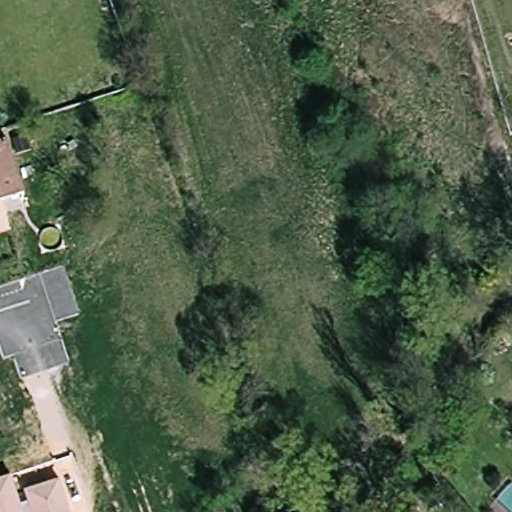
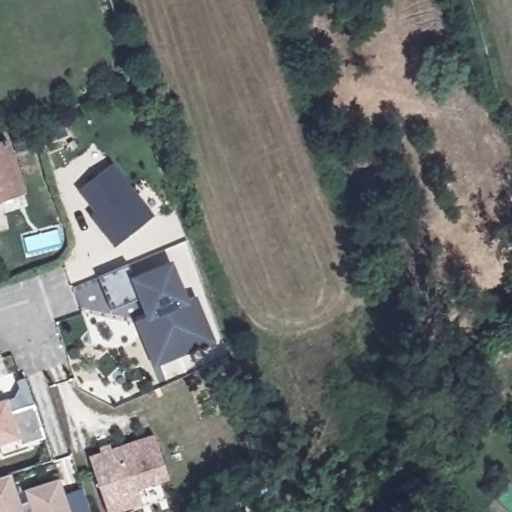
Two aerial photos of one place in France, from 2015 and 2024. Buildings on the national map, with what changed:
demolished [(75,144),(78,151),(57,164),(54,157),(75,144)]
unchanged [(5,146),(23,197),(0,204),(0,148),(5,146)]
new [(81,193),(115,167),(155,221),(115,251),(104,236),(91,218),(96,214),(81,193)]
new [(141,326),(152,322),(145,304),(115,317),(101,283),(131,271),(137,285),(173,270),(189,306),(197,302),(216,346),(164,367),(159,370),(141,326)]
new [(1,405),(6,403),(10,416),(33,408),(43,441),(20,449),(17,442),(0,448),(0,402),(1,405)]
new [(93,467),(105,462),(104,458),(114,455),(115,459),(158,445),(173,487),(141,498),(146,512),(109,512),(108,510),(93,467)]
unchanged [(22,503),(30,502),(25,489),(60,478),(72,512),(0,512),(0,478),(11,474),(22,503)]

